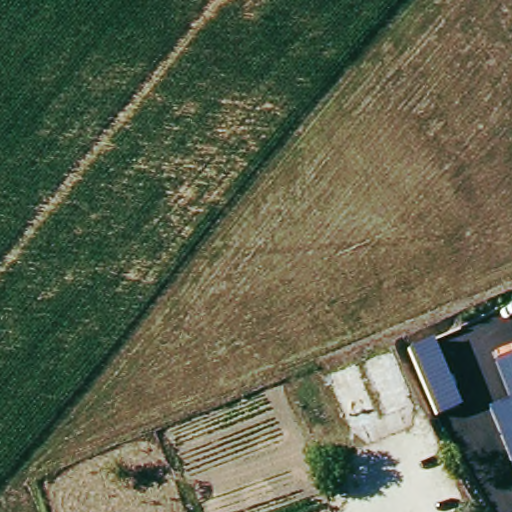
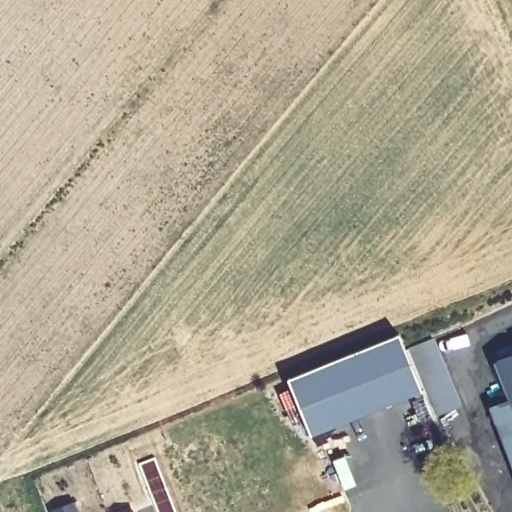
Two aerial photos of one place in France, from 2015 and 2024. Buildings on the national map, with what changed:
new [(289,378),(399,333),(421,390),(311,435),(289,378)]
unchanged [(462,403),(437,413),(412,348),(434,337),(462,403)]
demolished [(371,362),(395,352),(417,402),(394,415),(371,362)]
unchanged [(509,399),(495,361),(512,354),(512,461),(491,406),(509,399)]
demolished [(378,418),(353,428),(330,375),(357,363),(378,418)]

